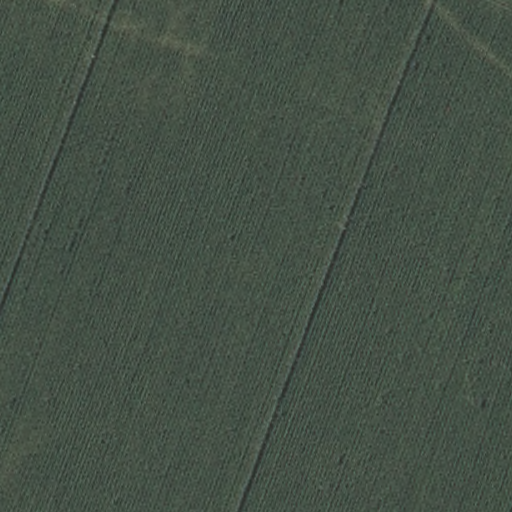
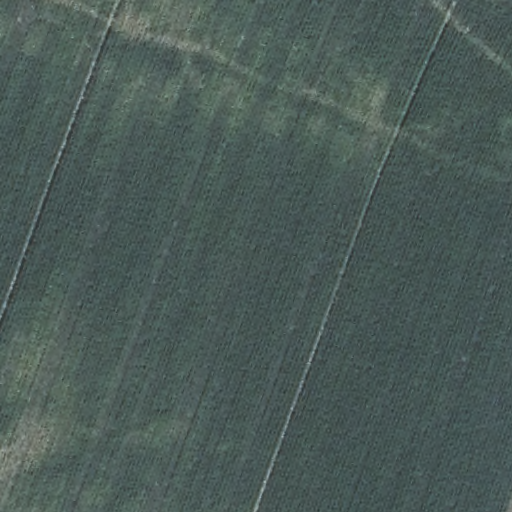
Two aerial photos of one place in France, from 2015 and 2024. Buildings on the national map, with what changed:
[]

